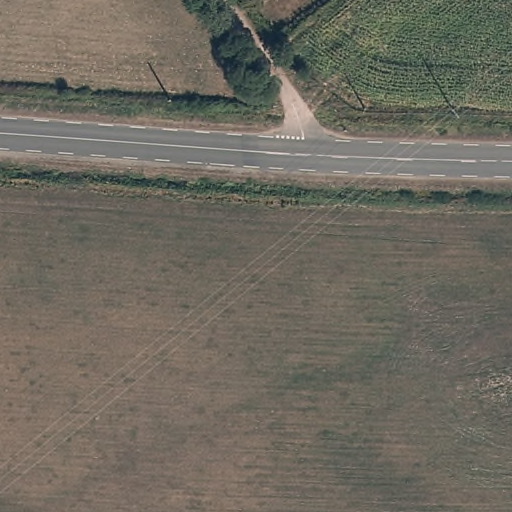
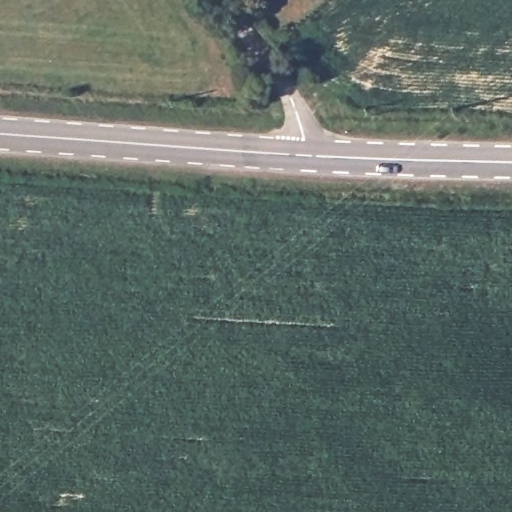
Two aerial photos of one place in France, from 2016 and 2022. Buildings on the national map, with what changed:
[]

